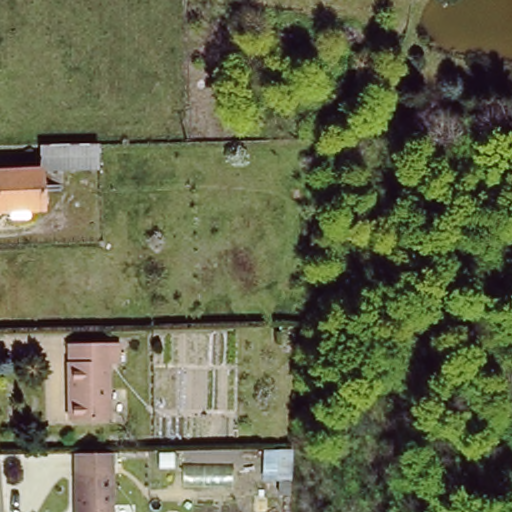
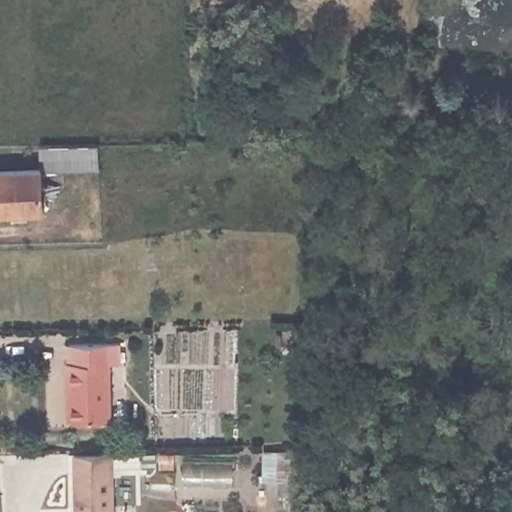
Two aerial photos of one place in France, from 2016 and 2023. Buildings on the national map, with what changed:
unchanged [(99,147),(99,171),(44,171),(44,147),(99,147)]
unchanged [(44,214),(0,214),(0,171),(44,171),(44,214)]
unchanged [(119,345),(117,366),(108,366),(107,423),(71,423),(71,398),(67,398),(67,346),(119,345)]
unchanged [(106,452),(104,512),(66,512),(65,453),(106,452)]

